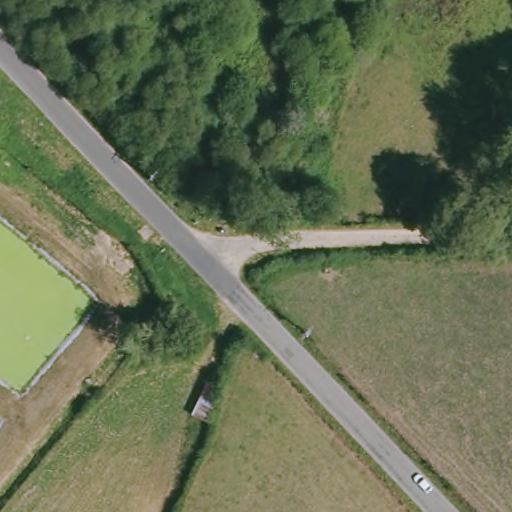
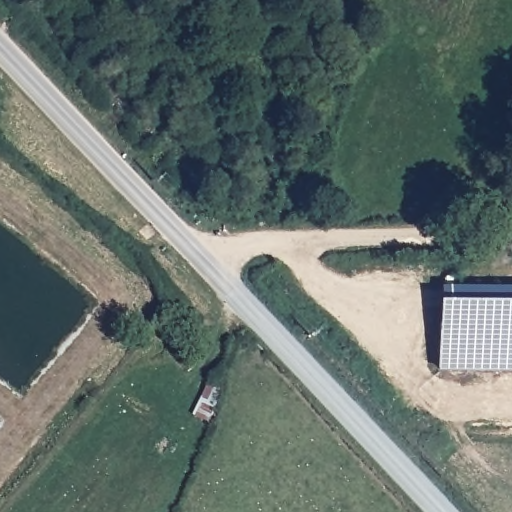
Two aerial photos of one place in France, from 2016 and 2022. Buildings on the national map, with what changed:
new [(439,286),(512,286),(512,370),(437,370),(439,286)]
unchanged [(210,378),(233,390),(215,429),(192,415),(210,378)]

